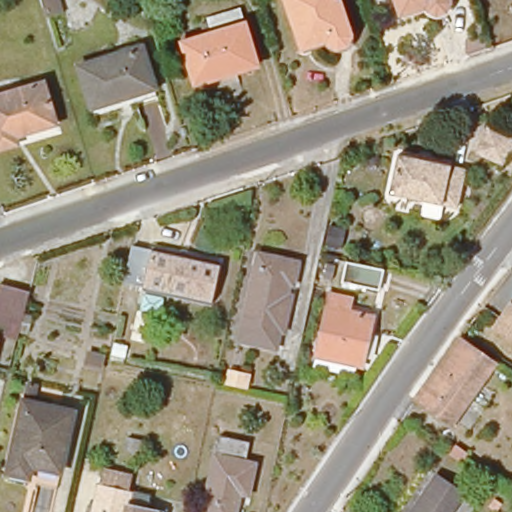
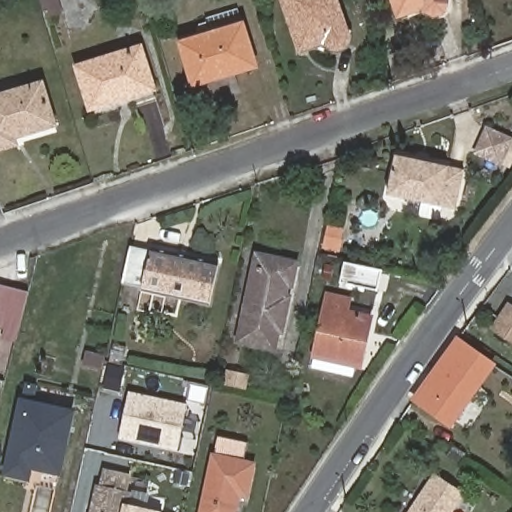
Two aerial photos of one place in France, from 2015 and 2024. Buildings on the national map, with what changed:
unchanged [(46,16),(42,0),(59,0),(62,11),(46,16)]
unchanged [(352,36),(352,40),(351,42),(349,45),(346,47),(343,48),(340,48),(337,47),(334,45),(332,42),(331,41),(299,52),(282,0),(340,0),(351,35),(352,36)]
unchanged [(451,2),(449,5),(446,7),(443,8),(439,8),(436,7),(434,5),(432,2),(431,1),(404,10),(401,0),(452,0),(451,2)]
unchanged [(194,94),(182,53),(214,44),(209,27),(239,19),(256,75),(194,94)]
unchanged [(153,92),(91,112),(78,72),(141,52),(153,92)]
unchanged [(55,124),(14,137),(16,144),(0,149),(0,95),(42,82),(55,124)]
unchanged [(501,146),(491,172),(466,162),(476,137),(501,146)]
unchanged [(459,209),(389,202),(393,162),(416,165),(424,166),(462,169),(459,209)]
unchanged [(223,260),(213,301),(147,286),(156,245),(223,260)]
unchanged [(273,326),(269,343),(239,337),(258,250),(297,260),(293,282),(291,292),(282,328),(273,326)]
unchanged [(379,292),(343,282),(347,263),(384,272),(379,292)]
unchanged [(0,330),(0,291),(31,298),(21,336),(0,330)]
unchanged [(332,366),(311,360),(312,353),(331,293),(351,299),(348,312),(372,319),(370,331),(362,361),(358,374),(332,366)]
unchanged [(512,343),(493,331),(508,307),(512,310),(512,343)]
unchanged [(427,390),(465,337),(498,363),(455,422),(439,411),(421,398),(427,390)]
unchanged [(101,368),(86,366),(88,354),(103,357),(101,368)]
unchanged [(229,374),(256,378),(250,395),(225,390),(229,374)]
new [(130,393),(186,404),(178,447),(122,437),(130,393)]
unchanged [(24,400),(74,412),(62,467),(36,462),(33,476),(10,470),(24,400)]
unchanged [(243,464),(253,467),(247,500),(237,497),(234,512),(202,512),(216,437),(247,443),(243,464)]
unchanged [(100,487),(104,468),(131,473),(130,476),(126,492),(130,493),(127,507),(149,512),(91,512),(97,487),(100,487)]
unchanged [(452,512),(413,512),(433,479),(462,496),(452,512)]

